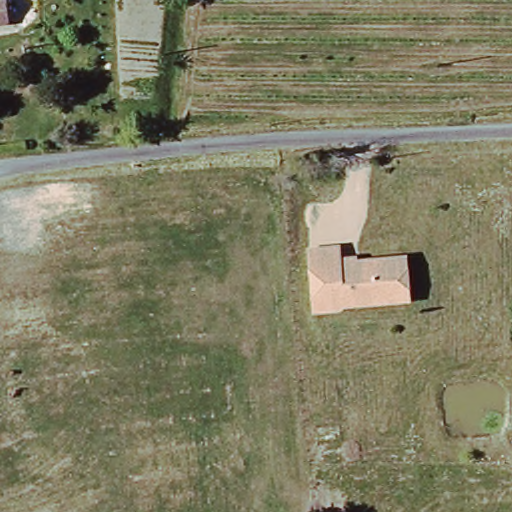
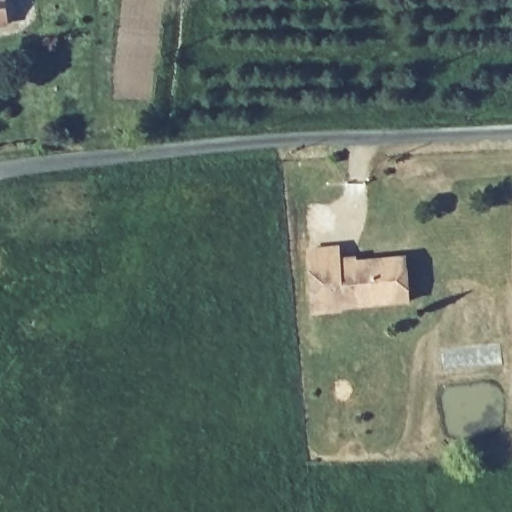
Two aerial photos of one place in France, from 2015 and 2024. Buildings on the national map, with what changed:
unchanged [(0,0),(6,0),(9,27),(0,28),(0,0)]
unchanged [(339,310),(313,312),(311,298),(307,250),(337,247),(338,263),(404,258),(408,301),(390,303),(342,307),(339,310)]

